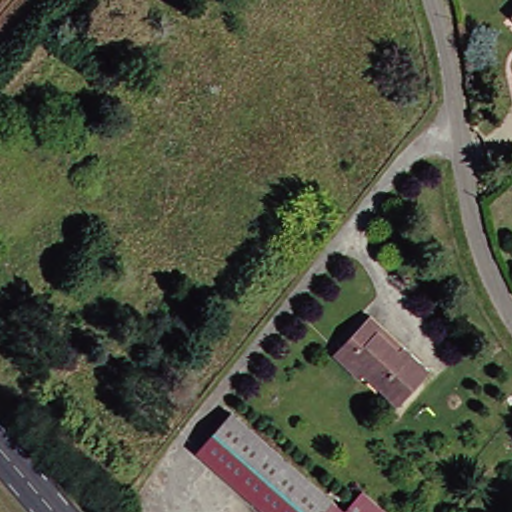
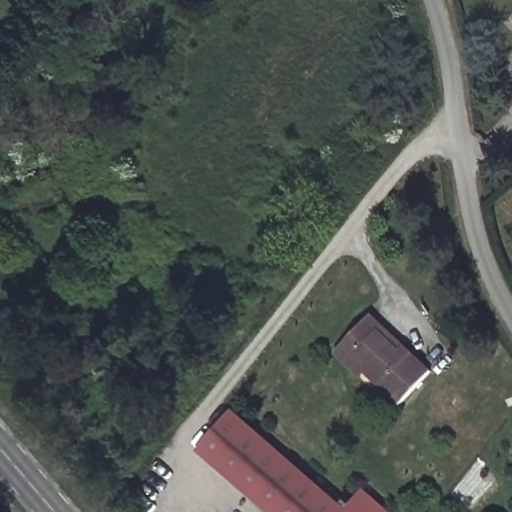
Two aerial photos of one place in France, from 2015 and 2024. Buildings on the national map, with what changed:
unchanged [(383,326),(380,330),(400,350),(405,345),(431,371),(400,405),(365,372),(360,376),(335,352),(348,339),(371,315),(383,326)]
unchanged [(199,452),(232,413),(346,512),(268,512),(199,452)]
unchanged [(363,492),(387,512),(346,512),(363,492)]

